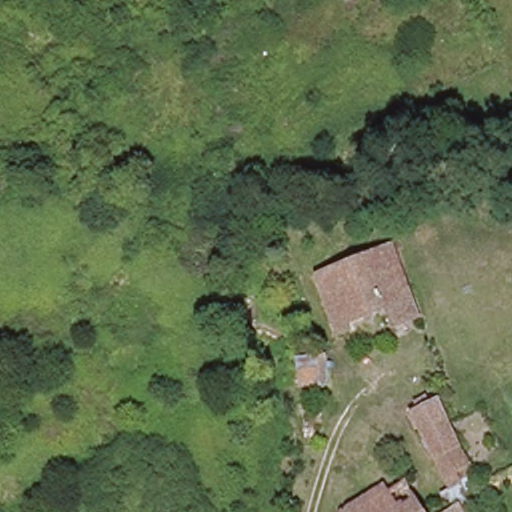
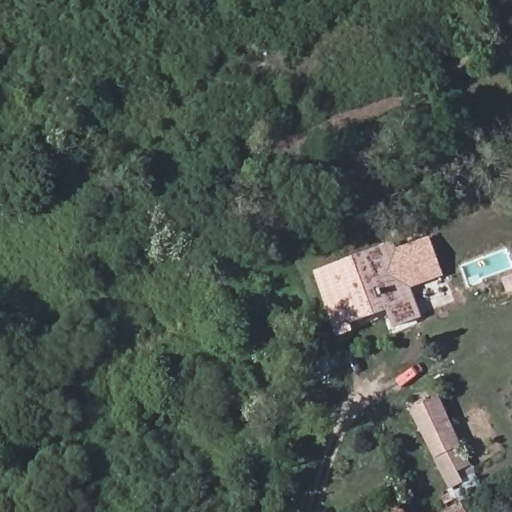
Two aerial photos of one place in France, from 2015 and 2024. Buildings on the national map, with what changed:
new [(408,288),(395,250),(429,236),(443,276),(408,288)]
unchanged [(383,313),(358,322),(362,336),(340,343),(316,270),(392,244),(414,303),(416,308),(420,317),(422,331),(392,340),(383,313)]
unchanged [(331,387),(300,391),(299,355),(330,353),(331,387)]
unchanged [(447,485),(411,415),(441,401),(482,480),(464,490),(458,479),(447,485)]
unchanged [(386,486),(390,493),(406,483),(428,512),(339,512),(386,486)]
unchanged [(449,504),(455,512),(434,512),(449,504)]

